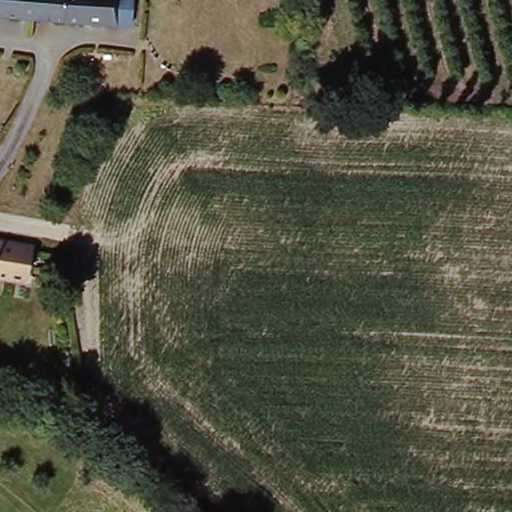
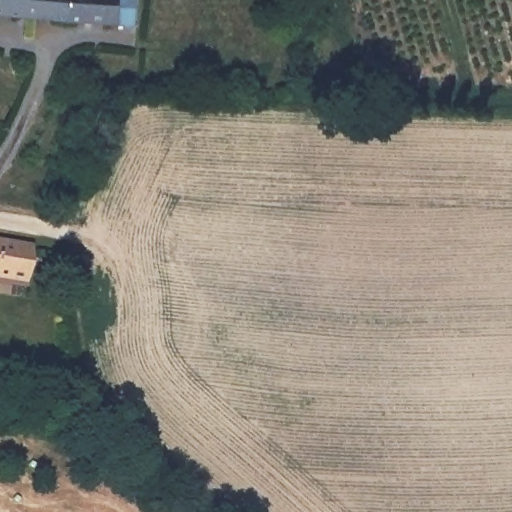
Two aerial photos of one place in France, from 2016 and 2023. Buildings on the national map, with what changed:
unchanged [(145,28),(0,16),(0,0),(148,0),(145,28)]
unchanged [(30,281),(0,277),(0,240),(34,246),(30,281)]

